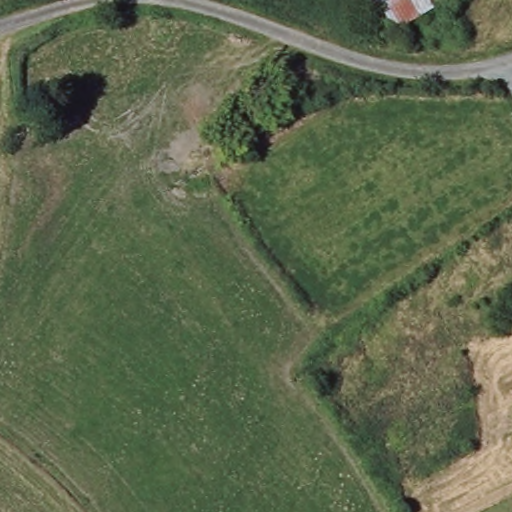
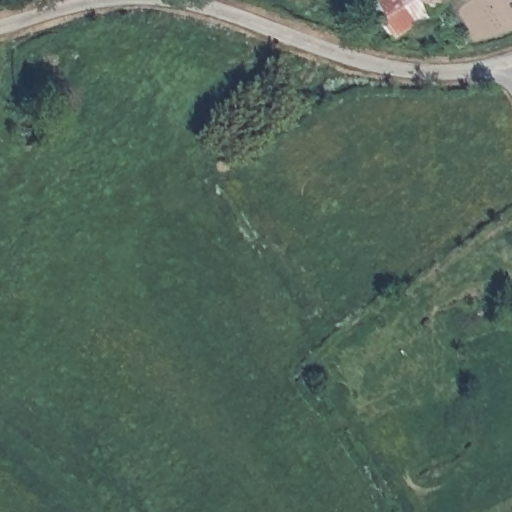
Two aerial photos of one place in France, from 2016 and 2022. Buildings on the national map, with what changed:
unchanged [(393,35),(372,1),(375,0),(424,0),(431,9),(393,35)]
unchanged [(431,9),(424,0),(445,0),(436,6),(431,9)]

